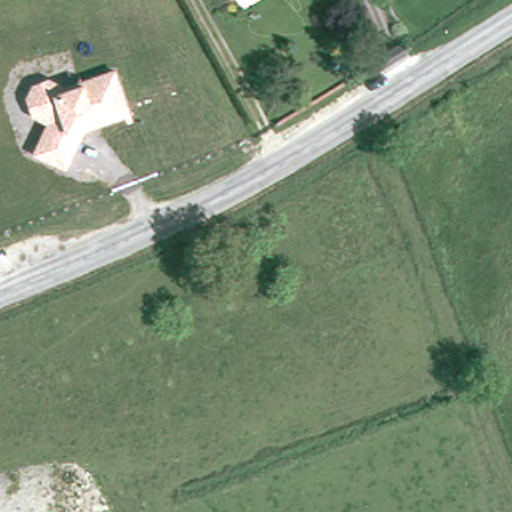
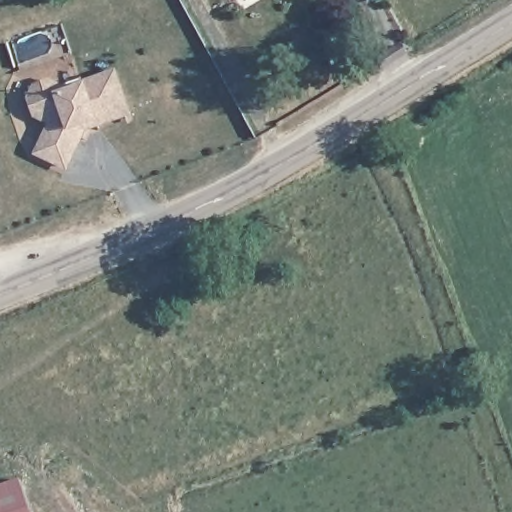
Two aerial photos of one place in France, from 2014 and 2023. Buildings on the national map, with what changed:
unchanged [(28,114),(25,99),(33,84),(48,79),(59,82),(65,90),(81,83),(79,81),(114,67),(132,119),(125,121),(123,116),(85,130),(66,172),(31,156),(46,123),(28,114)]
new [(0,486),(20,478),(32,512),(0,512),(0,486)]

